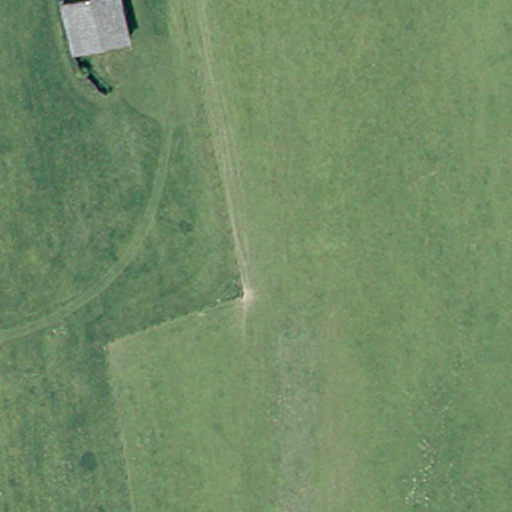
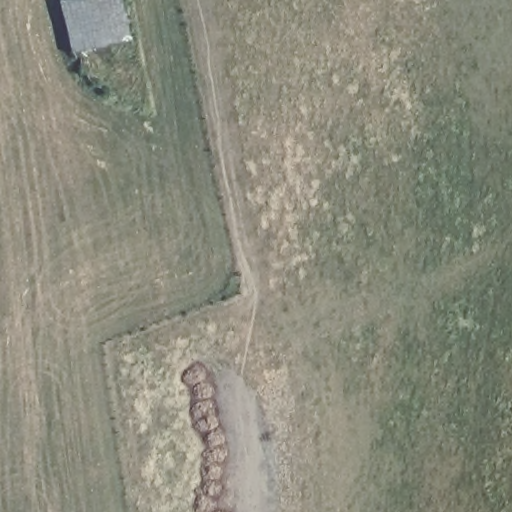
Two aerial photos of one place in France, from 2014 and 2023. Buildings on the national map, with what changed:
unchanged [(75,47),(57,0),(118,0),(130,35),(75,47)]

